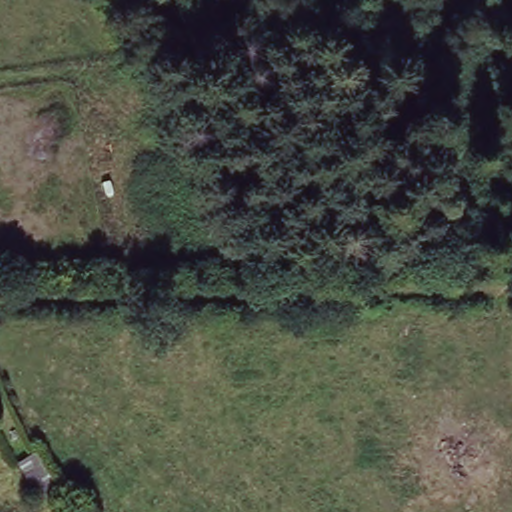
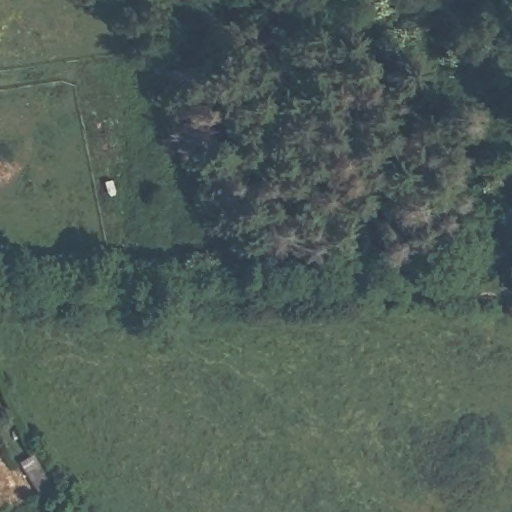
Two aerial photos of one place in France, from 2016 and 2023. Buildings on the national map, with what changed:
unchanged [(57,487),(37,497),(19,463),(39,451),(57,487)]

